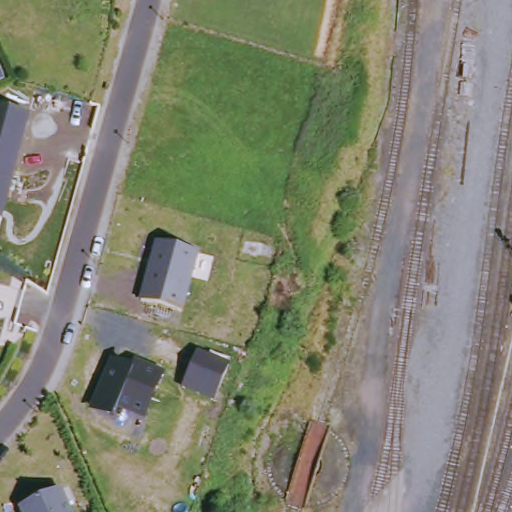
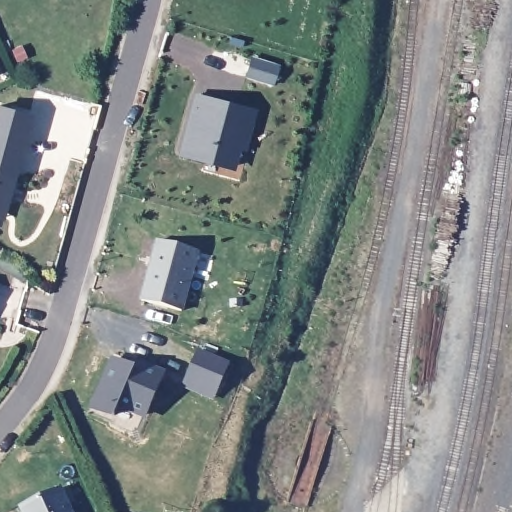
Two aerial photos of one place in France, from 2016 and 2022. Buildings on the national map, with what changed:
new [(255,109),(244,151),(240,150),(234,172),(179,156),(197,93),(255,109)]
unchanged [(0,111),(1,107),(34,115),(17,178),(7,218),(0,217),(0,111)]
unchanged [(158,240),(198,251),(181,311),(141,300),(158,240)]
new [(184,387),(186,381),(198,352),(228,365),(216,394),(213,399),(184,387)]
unchanged [(115,360),(135,368),(137,361),(170,375),(149,423),(121,411),(116,422),(92,411),(115,360)]
unchanged [(71,512),(24,512),(21,506),(60,488),(71,512)]

